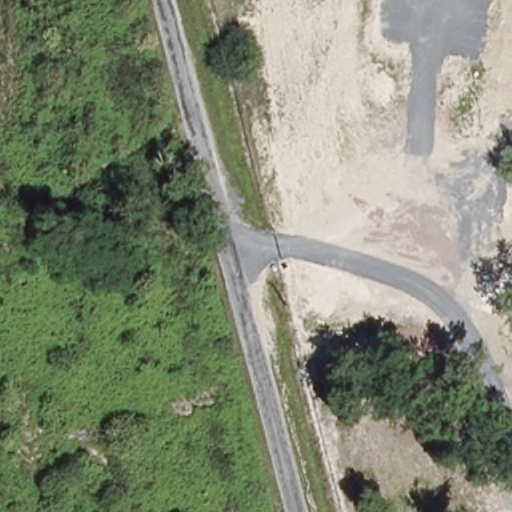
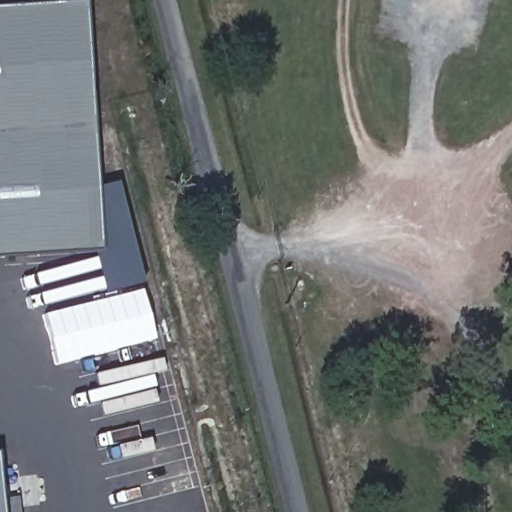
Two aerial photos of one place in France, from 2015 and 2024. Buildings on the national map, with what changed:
demolished [(265,0),(291,0),(291,14),(280,71),(264,69),(265,0)]
new [(85,2),(102,245),(0,253),(0,7),(85,2)]
demolished [(280,71),(291,14),(290,150),(263,150),(264,69),(280,71)]
new [(104,292),(91,246),(102,245),(98,186),(116,181),(142,283),(104,292)]
new [(142,290),(155,337),(57,363),(45,315),(142,290)]
new [(2,512),(0,512),(0,494),(2,512)]

